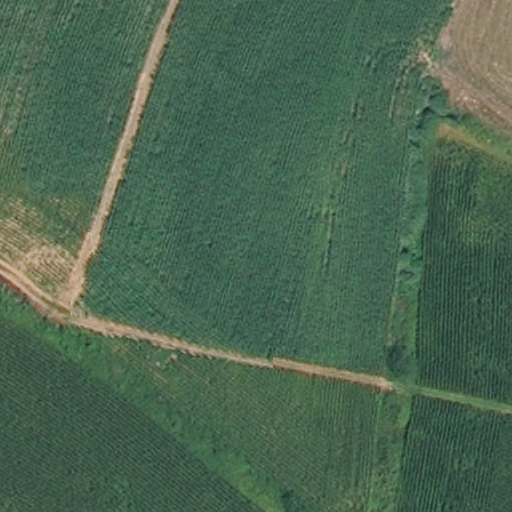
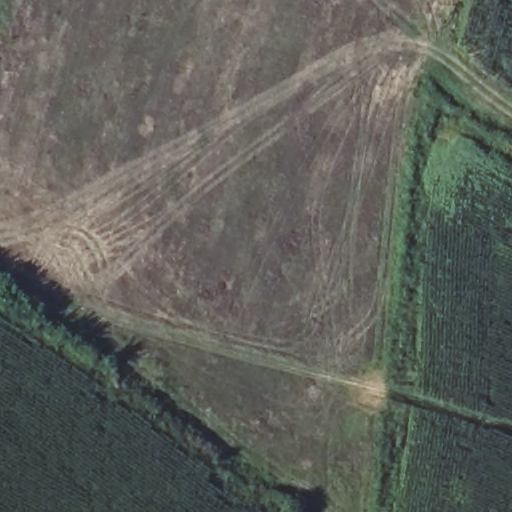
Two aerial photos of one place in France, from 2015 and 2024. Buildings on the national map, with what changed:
[]

